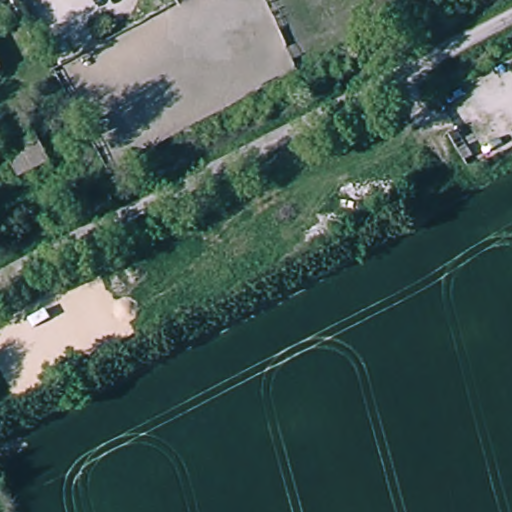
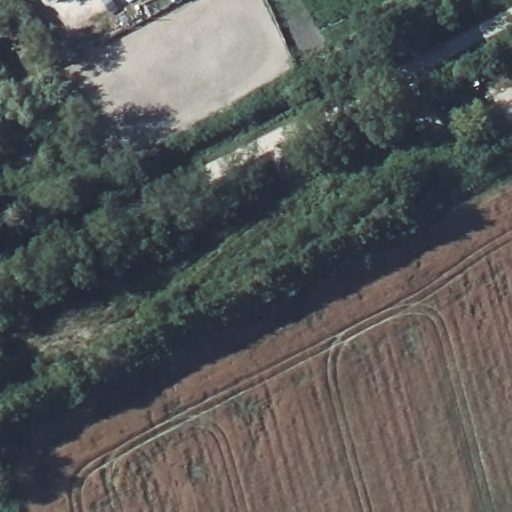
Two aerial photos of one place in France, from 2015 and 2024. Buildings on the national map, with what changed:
unchanged [(493,128),(502,148),(488,155),(480,136),(493,128)]
unchanged [(36,136),(51,164),(21,180),(6,154),(36,136)]

